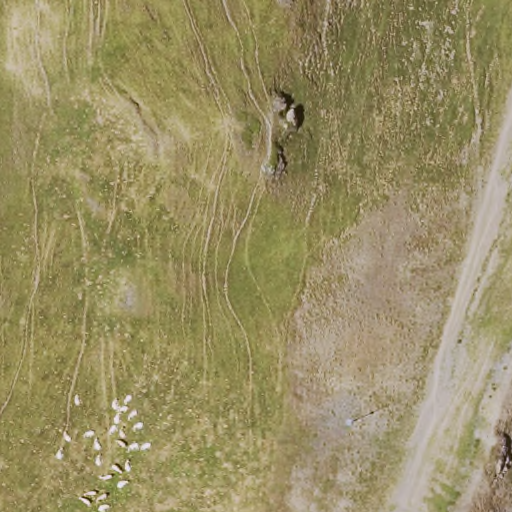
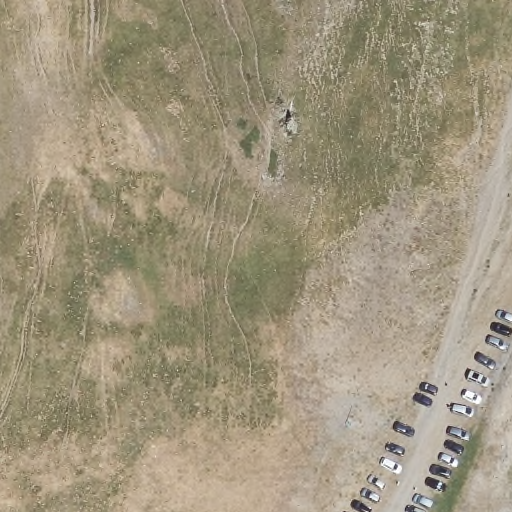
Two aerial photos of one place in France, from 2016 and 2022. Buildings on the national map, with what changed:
[]

